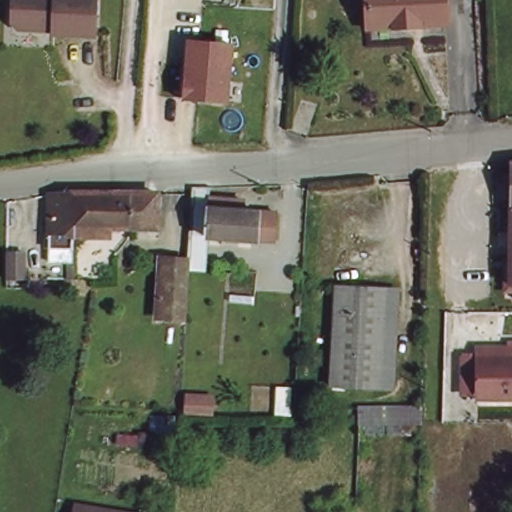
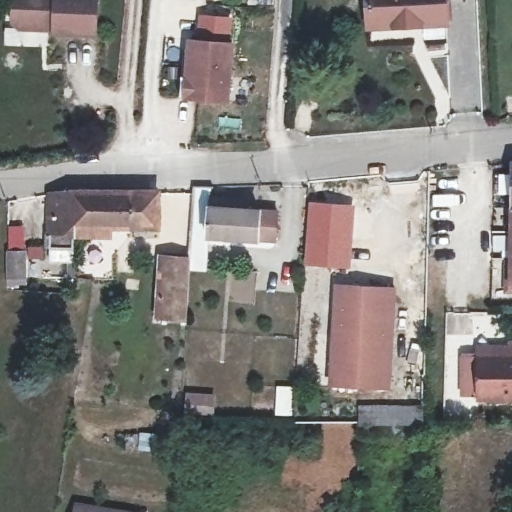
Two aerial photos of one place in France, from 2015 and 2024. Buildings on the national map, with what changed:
unchanged [(54,32),(54,28),(19,27),(12,20),(13,0),(96,0),(95,33),(54,32)]
unchanged [(369,26),(367,0),(444,0),(445,22),(369,26)]
unchanged [(235,42),(230,100),(184,96),(187,39),(235,42)]
unchanged [(197,206),(187,205),(189,188),(189,185),(200,185),(205,185),(205,206),(212,207),(213,198),(239,200),(238,209),(254,210),(272,211),(271,240),(252,238),(202,235),(195,234),(197,215),(197,206)]
unchanged [(79,226),(79,248),(55,247),(55,193),(78,191),(79,226)]
unchanged [(164,227),(137,226),(79,226),(78,191),(137,191),(164,191),(164,192),(164,227)]
new [(308,201),(355,204),(352,267),(304,264),(308,201)]
unchanged [(159,257),(184,259),(184,266),(180,319),(155,317),(159,257)]
unchanged [(387,392),(337,390),(342,289),(392,292),(387,392)]
unchanged [(478,397),(478,388),(463,388),(463,355),(512,355),(512,397),(478,397)]
unchanged [(217,415),(185,413),(187,386),(218,390),(217,415)]
unchanged [(359,434),(360,422),(360,407),(422,407),(422,422),(411,422),(412,434),(359,434)]
unchanged [(76,505),(122,512),(75,512),(76,505)]

